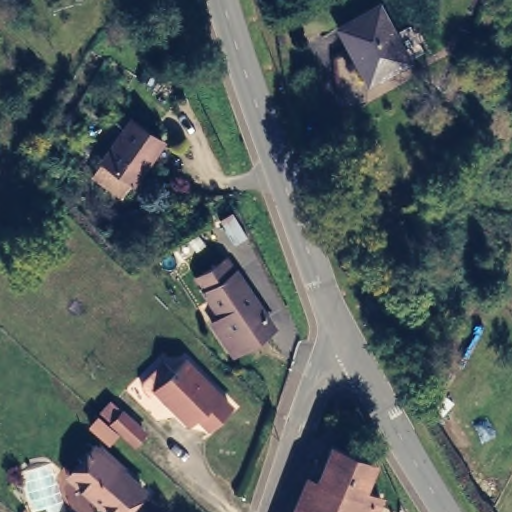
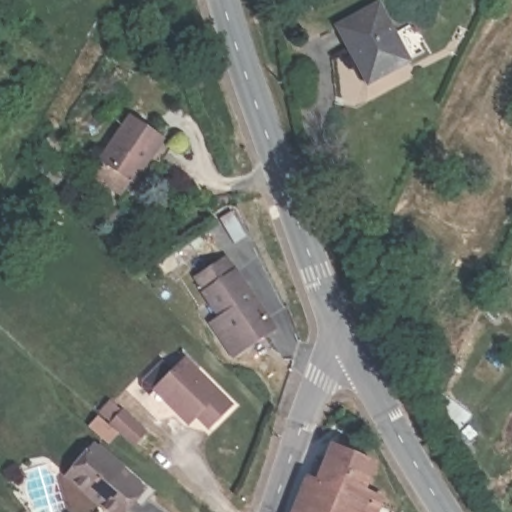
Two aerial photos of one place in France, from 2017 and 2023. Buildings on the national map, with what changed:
unchanged [(381,0),(382,0),(411,56),(370,76),(342,21),(381,0)]
unchanged [(129,121),(161,142),(133,185),(101,163),(129,121)]
unchanged [(256,234),(237,242),(225,217),(240,206),(256,234)]
unchanged [(230,251),(270,318),(229,342),(217,323),(229,315),(202,270),(230,251)]
unchanged [(175,364),(187,376),(193,366),(237,409),(217,432),(203,418),(198,424),(168,394),(162,402),(151,392),(175,364)]
unchanged [(145,443),(125,423),(114,413),(125,400),(136,410),(156,430),(145,443)]
unchanged [(114,512),(74,477),(67,470),(94,441),(101,449),(142,490),(121,512),(114,512)]
unchanged [(359,498),(374,504),(371,512),(302,512),(324,456),(367,473),(359,498)]

